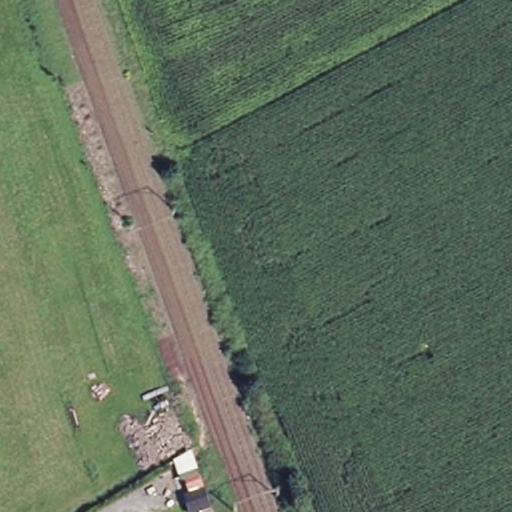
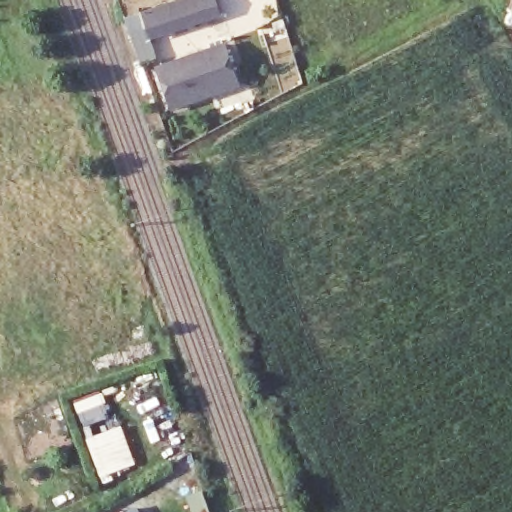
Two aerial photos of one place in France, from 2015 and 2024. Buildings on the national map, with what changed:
new [(213,0),(219,15),(152,41),(142,15),(182,0),(213,0)]
new [(225,46),(240,85),(174,111),(159,72),(225,46)]
new [(85,440),(119,425),(135,463),(100,477),(85,440)]

